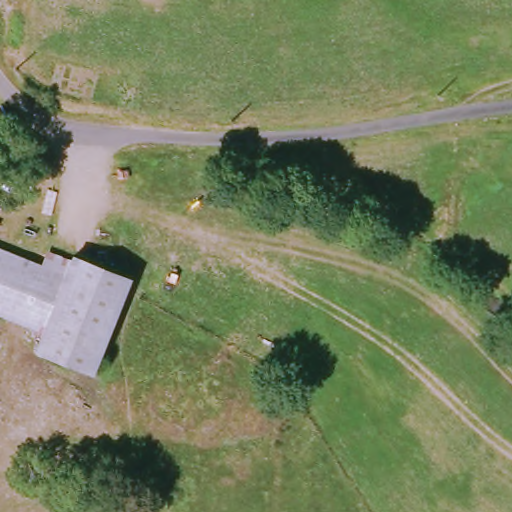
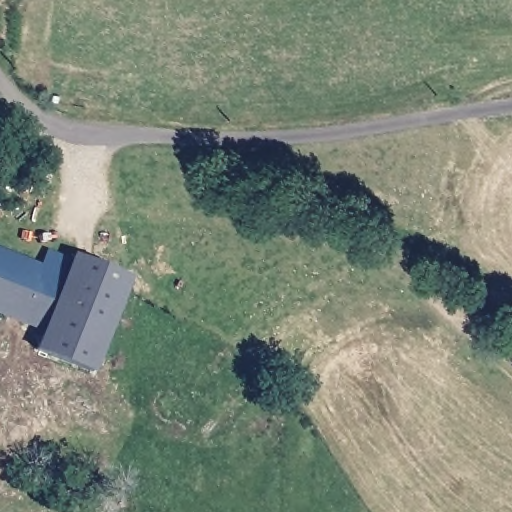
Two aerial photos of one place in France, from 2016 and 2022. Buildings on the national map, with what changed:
unchanged [(52,256),(75,262),(76,257),(129,276),(96,371),(38,353),(45,329),(0,315),(0,250),(45,265),(52,256)]

